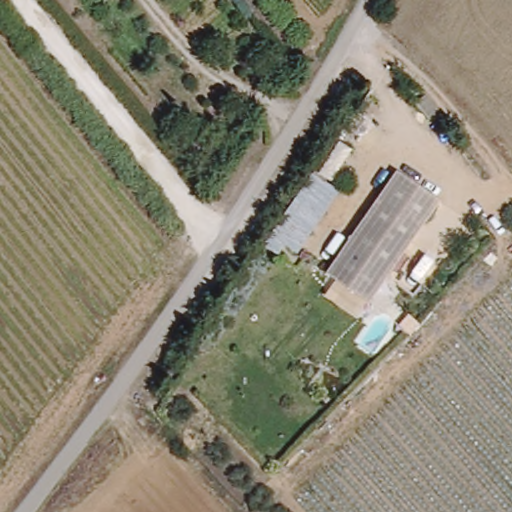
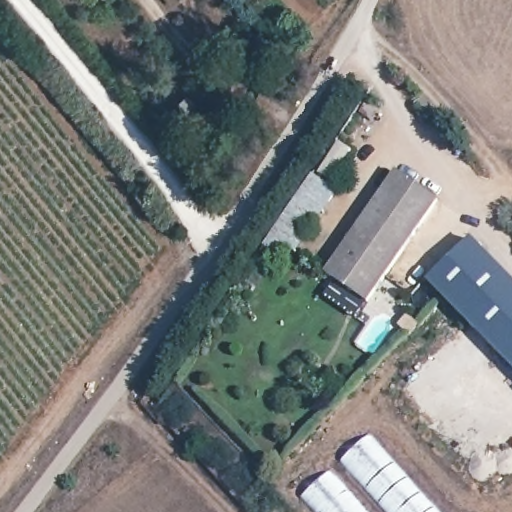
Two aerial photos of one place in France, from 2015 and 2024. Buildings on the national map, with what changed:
unchanged [(439,202),(368,304),(326,275),(397,173),(439,202)]
unchanged [(309,176),(338,194),(299,255),(268,234),(309,176)]
new [(472,238),(512,280),(512,370),(426,281),(472,238)]
demolished [(208,385),(233,359),(296,422),(269,450),(208,385)]
new [(438,512),(314,512),(301,498),(368,432),(438,512)]

